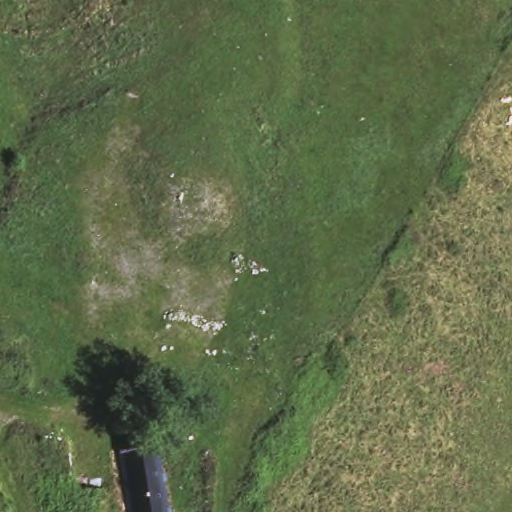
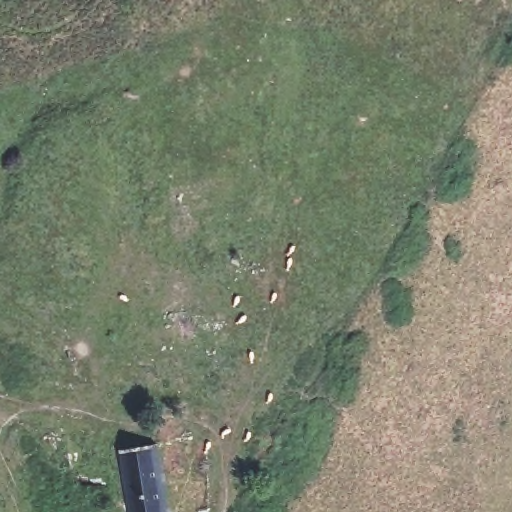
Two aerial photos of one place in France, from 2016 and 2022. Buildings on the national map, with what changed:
unchanged [(173,512),(128,512),(119,444),(161,438),(173,512)]

